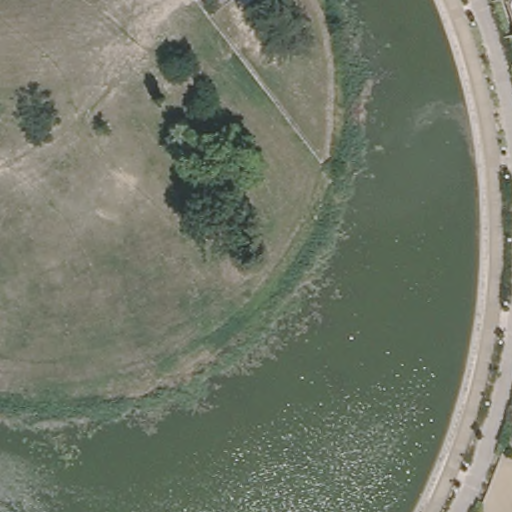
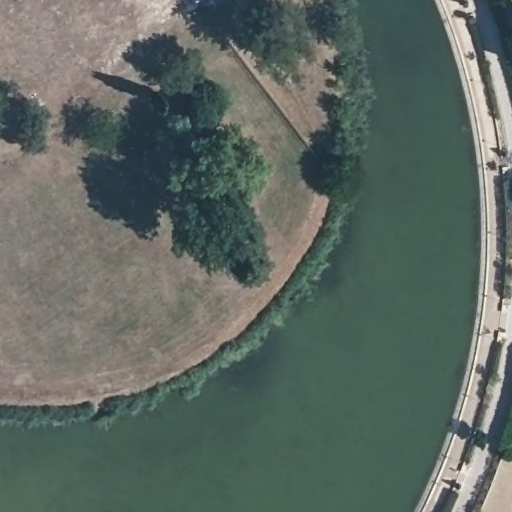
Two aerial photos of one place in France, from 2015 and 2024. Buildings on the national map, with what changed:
unchanged [(512,0),(512,5),(510,0),(512,0)]
unchanged [(474,511),(477,512),(473,512),(474,511)]

